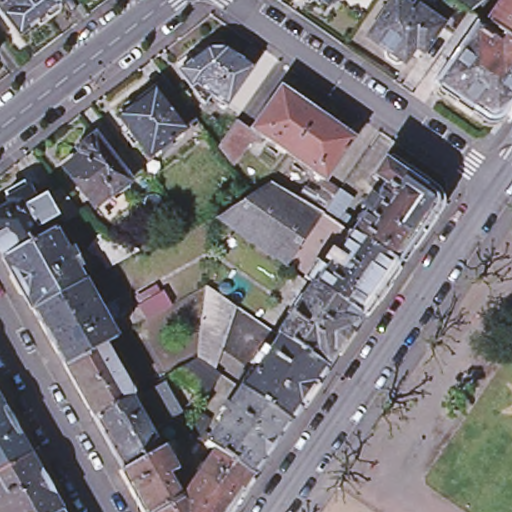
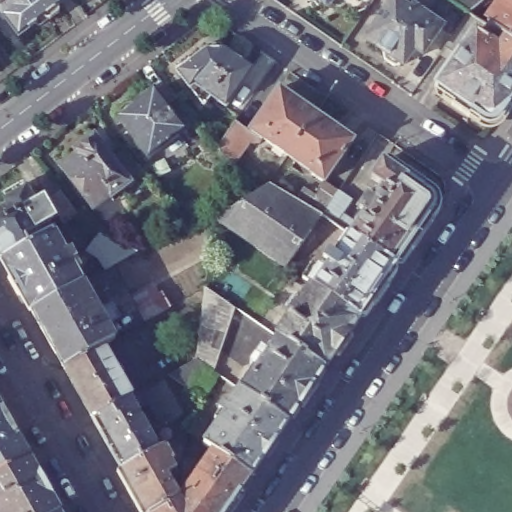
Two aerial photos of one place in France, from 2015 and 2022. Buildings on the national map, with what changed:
unchanged [(65,18),(53,27),(48,25),(24,43),(0,11),(0,0),(58,0),(66,10),(63,12),(65,18)]
unchanged [(312,0),(319,0),(315,4),(312,0)]
unchanged [(320,0),(326,0),(322,3),(320,0)]
unchanged [(468,28),(451,53),(438,43),(448,29),(436,21),(417,50),(409,45),(398,61),(395,60),(388,62),(380,56),(378,50),(380,48),(361,35),(384,0),(396,0),(405,6),(408,3),(434,20),(447,0),(476,0),(464,9),(481,21),(500,33),(493,44),(468,28)]
unchanged [(481,21),(496,0),(512,0),(512,41),(500,33),(481,21)]
unchanged [(512,87),(492,116),(487,118),(482,118),(476,115),(430,83),(451,53),(468,28),(493,44),(500,33),(512,41),(512,87)]
unchanged [(211,92),(205,102),(178,68),(205,47),(209,40),(222,38),(228,45),(227,47),(253,64),(227,103),(211,92)]
unchanged [(231,121),(246,131),(276,90),(312,114),(283,156),(260,139),(258,140),(251,135),(245,143),(228,169),(212,149),(226,129),(231,121)]
unchanged [(117,143),(124,138),(113,124),(115,123),(115,120),(115,115),(117,111),(122,109),(126,108),(130,109),(132,110),(150,96),(161,112),(173,103),(191,127),(180,136),(144,164),(133,150),(127,155),(117,143)]
unchanged [(349,140),(320,183),(308,175),(310,173),(283,156),(312,114),(349,140)]
unchanged [(105,201),(88,214),(58,176),(75,162),(71,156),(73,154),(73,148),(80,143),(87,144),(88,143),(89,141),(104,161),(115,152),(137,180),(126,188),(107,203),(105,201)]
unchanged [(431,205),(431,211),(391,268),(346,236),(361,215),(355,210),(364,198),(370,202),(375,195),(363,187),(368,179),(367,178),(380,161),(425,194),(430,200),(431,205)]
unchanged [(248,194),(263,184),(264,185),(292,201),(301,189),(311,196),(317,189),(318,190),(321,186),(333,194),(335,192),(347,201),(338,214),(350,223),(342,234),(330,225),(318,217),(281,271),(208,220),(248,194)]
unchanged [(5,208),(0,199),(0,198),(5,194),(11,190),(19,188),(30,205),(39,200),(50,218),(40,224),(45,234),(0,260),(0,210),(5,208)]
unchanged [(76,217),(60,226),(43,197),(55,190),(76,217)]
unchanged [(0,265),(0,260),(45,234),(49,232),(61,253),(66,250),(75,264),(70,267),(78,284),(27,313),(0,265)]
unchanged [(138,252),(106,270),(101,260),(87,252),(100,232),(138,252)]
unchanged [(305,287),(297,282),(308,265),(320,274),(346,236),(391,268),(355,321),(321,370),(275,339),(271,336),(305,287)]
unchanged [(27,313),(78,284),(95,312),(109,305),(116,317),(102,325),(110,339),(99,346),(58,369),(27,313)]
unchanged [(198,400),(163,377),(157,365),(177,353),(185,366),(192,361),(195,338),(200,288),(231,309),(216,352),(209,373),(214,376),(198,400)]
unchanged [(171,307),(146,322),(138,308),(163,293),(171,307)]
unchanged [(284,424),(238,392),(259,361),(252,357),(257,350),(264,355),(275,339),(321,370),(284,424)]
unchanged [(58,369),(99,346),(127,397),(123,399),(87,419),(58,369)]
unchanged [(177,415),(143,433),(132,413),(145,406),(139,397),(160,385),(177,415)]
unchanged [(247,478),(211,453),(200,445),(220,415),(215,411),(218,406),(222,409),(235,390),(238,392),(284,424),(247,478)]
unchanged [(87,419),(123,399),(132,413),(143,433),(153,451),(116,471),(87,419)]
unchanged [(0,473),(0,407),(28,457),(0,473)]
unchanged [(205,422),(203,432),(196,443),(183,434),(195,415),(205,422)]
unchanged [(116,471),(153,451),(163,445),(171,459),(165,463),(171,474),(162,479),(175,501),(156,512),(140,512),(116,471)]
unchanged [(175,501),(178,502),(186,491),(190,494),(197,485),(191,481),(211,453),(247,478),(223,512),(156,512),(175,501)]
unchanged [(28,457),(59,512),(0,512),(0,473),(28,457)]

